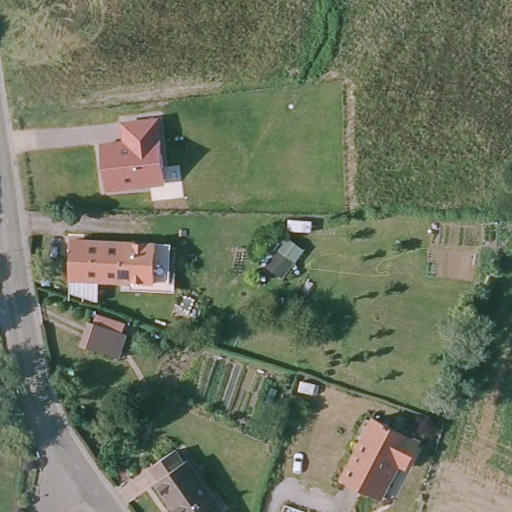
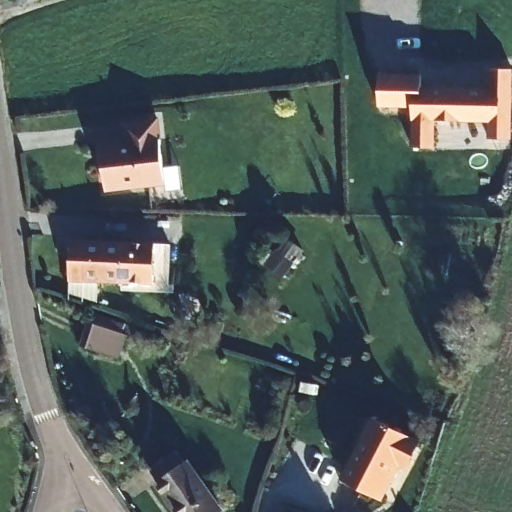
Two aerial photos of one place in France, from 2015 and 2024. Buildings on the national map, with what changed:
new [(422,86),(487,89),(488,68),(512,69),(512,92),(511,139),(489,139),(489,123),(436,120),(435,149),(412,148),(413,107),(377,107),(379,73),(421,74),(422,86)]
unchanged [(120,121),(158,116),(165,184),(106,191),(100,142),(124,139),(120,121)]
unchanged [(100,287),(66,286),(67,231),(172,234),(177,234),(192,234),(190,279),(171,279),(145,279),(145,274),(100,273),(100,287)]
new [(262,264),(274,250),(282,240),(297,252),(289,262),(277,276),(262,264)]
unchanged [(127,325),(119,350),(83,339),(91,314),(127,325)]
unchanged [(331,369),(367,382),(362,397),(327,385),(325,385),(331,369)]
unchanged [(412,438),(382,495),(335,468),(364,411),(412,438)]
unchanged [(170,446),(180,459),(184,457),(220,506),(213,512),(175,512),(151,481),(155,478),(145,466),(170,446)]

